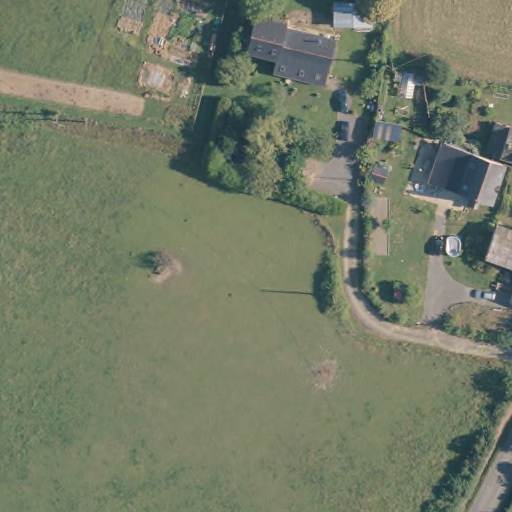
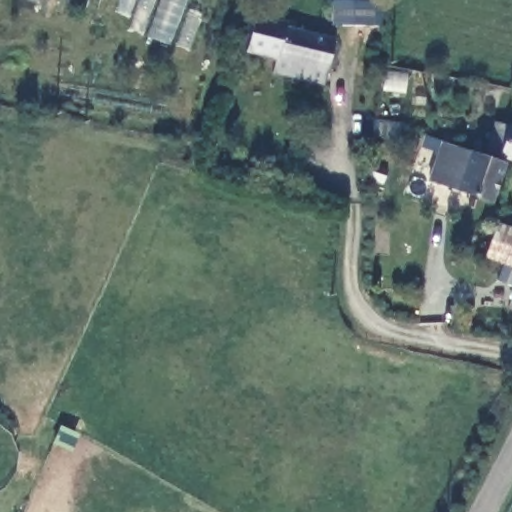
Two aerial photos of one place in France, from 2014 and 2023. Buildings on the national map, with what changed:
new [(209,0),(189,51),(127,30),(139,0),(209,0)]
unchanged [(374,22),(338,21),(339,0),(388,0),(388,22),(374,22)]
unchanged [(275,71),(279,58),(242,48),(251,14),(283,23),(281,30),(338,41),(330,72),(326,86),(275,71)]
unchanged [(494,155),(498,142),(502,129),(512,132),(512,160),(511,159),(494,155)]
unchanged [(453,147),(480,156),(506,165),(497,210),(439,187),(453,147)]
demolished [(390,181),(371,173),(373,155),(397,167),(390,181)]
unchanged [(491,225),(512,231),(512,266),(482,256),(491,225)]

